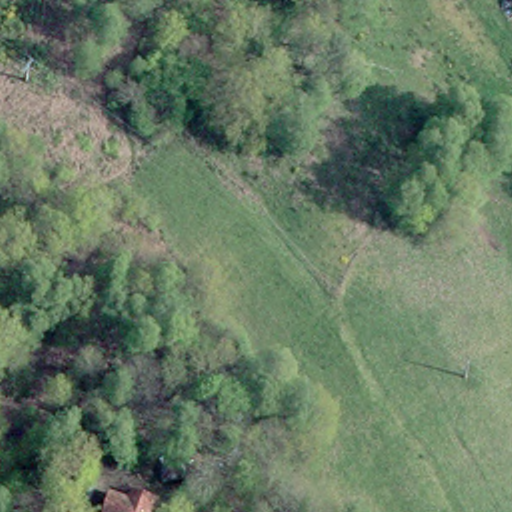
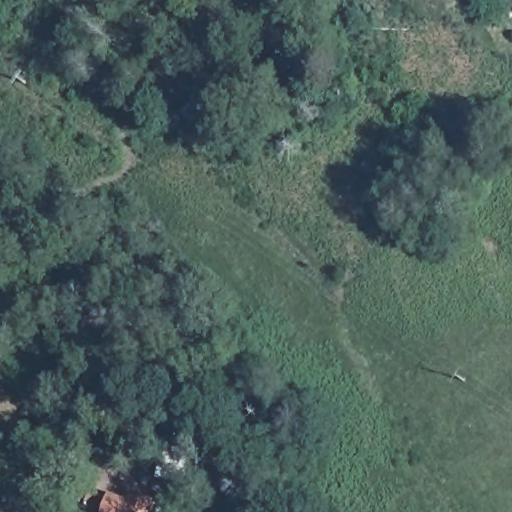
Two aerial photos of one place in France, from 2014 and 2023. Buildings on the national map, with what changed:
unchanged [(508,7),(510,1),(512,0),(512,12),(511,12),(508,7)]
unchanged [(125,495),(129,483),(155,494),(149,512),(100,512),(104,494),(125,495)]

